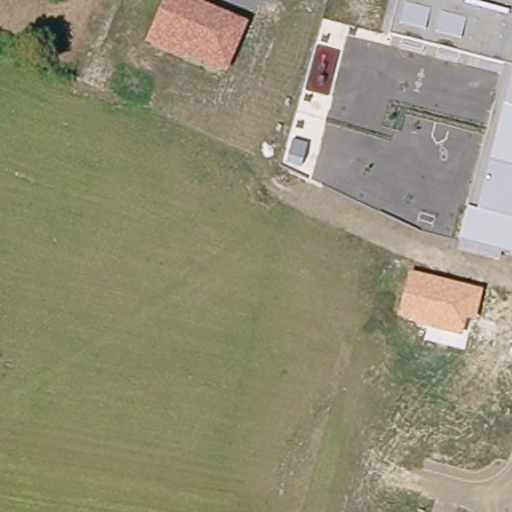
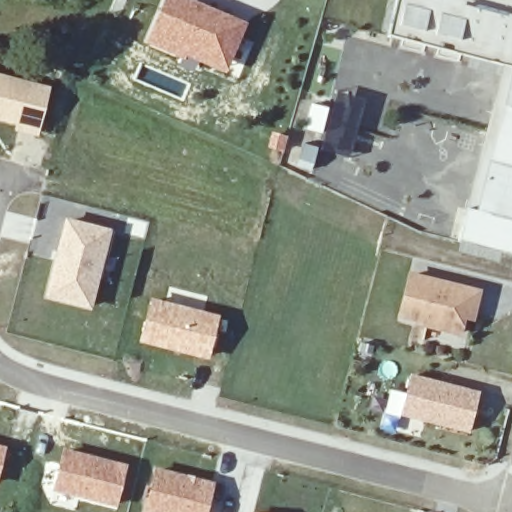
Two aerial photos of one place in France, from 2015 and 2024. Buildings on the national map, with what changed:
unchanged [(146,43),(164,0),(195,0),(249,22),(228,71),(146,43)]
unchanged [(501,251),(498,262),(458,251),(459,240),(468,209),(501,74),(394,45),(396,35),(389,34),(397,0),(512,0),(512,253),(501,251)]
new [(38,133),(0,123),(0,73),(50,87),(38,133)]
new [(110,234),(92,306),(49,295),(69,221),(110,234)]
unchanged [(465,322),(461,335),(416,326),(416,321),(399,317),(408,272),(483,290),(475,321),(465,322)]
new [(149,297),(220,315),(209,359),(138,343),(149,297)]
unchanged [(413,376),(479,395),(469,433),(403,414),(413,376)]
new [(0,469),(0,445),(6,447),(0,469)]
new [(63,447),(128,464),(115,508),(51,492),(63,447)]
new [(215,482),(208,512),(141,512),(154,466),(215,482)]

